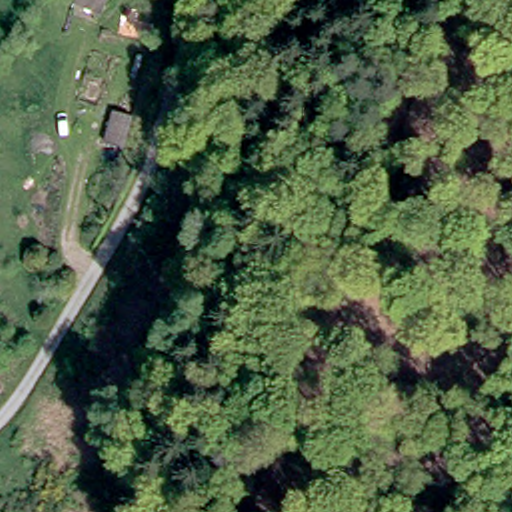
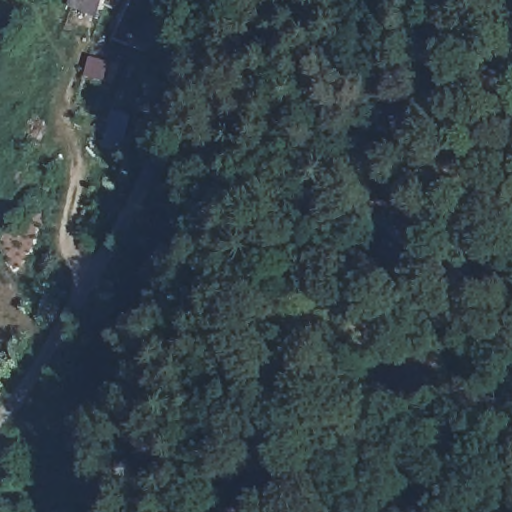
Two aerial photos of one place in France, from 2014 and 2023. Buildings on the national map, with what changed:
unchanged [(100,16),(73,9),(76,0),(106,0),(100,16)]
unchanged [(133,77),(121,108),(104,103),(115,71),(133,77)]

